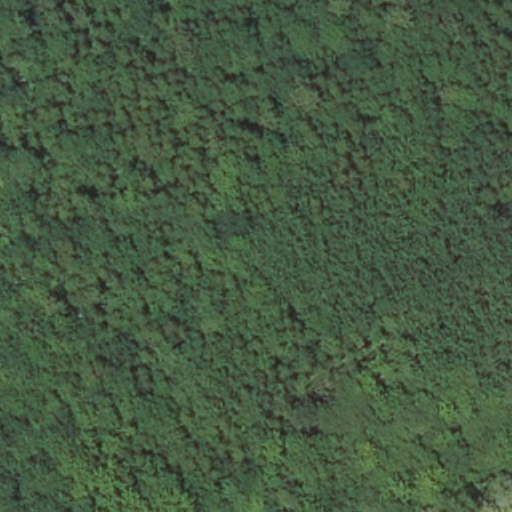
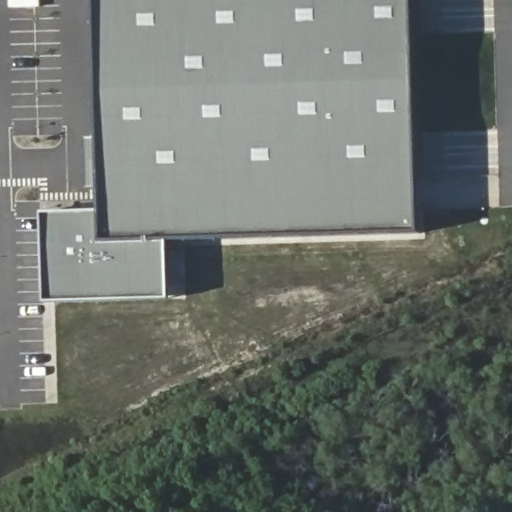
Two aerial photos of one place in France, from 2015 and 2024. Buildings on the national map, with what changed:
new [(426,229),(175,237),(177,296),(51,300),(48,209),(106,207),(99,0),(419,0),(426,229)]

